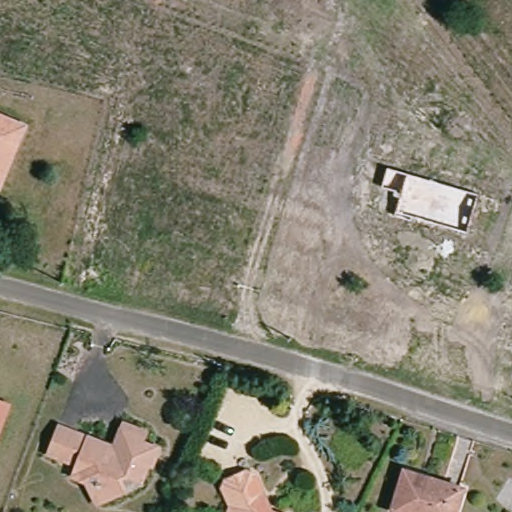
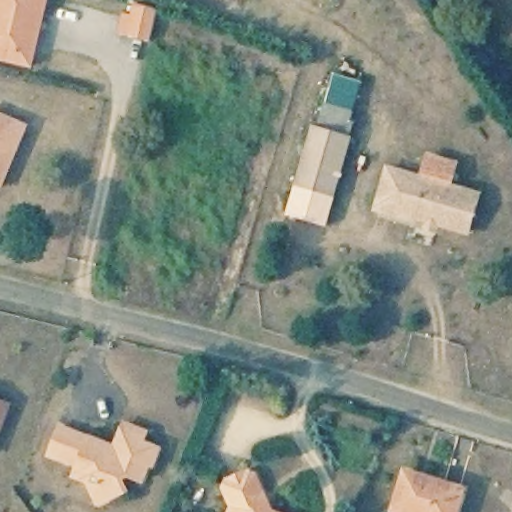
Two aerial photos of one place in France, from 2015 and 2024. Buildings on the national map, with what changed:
new [(48,0),(31,70),(0,64),(0,0),(48,0)]
unchanged [(24,124),(1,183),(0,183),(0,115),(24,124)]
new [(351,137),(335,199),(295,189),(311,126),(351,137)]
new [(480,192),(468,237),(436,229),(435,234),(371,216),(385,165),(480,192)]
unchanged [(7,405),(0,425),(0,402),(7,405)]
unchanged [(140,427),(136,437),(153,445),(146,460),(142,459),(135,475),(121,470),(114,474),(119,486),(91,498),(82,476),(69,470),(72,461),(45,450),(56,421),(86,433),(110,443),(120,419),(140,427)]
unchanged [(231,502),(223,483),(226,476),(246,467),(254,470),(260,485),(261,487),(268,504),(270,508),(279,512),(228,512),(231,502)]
unchanged [(455,512),(397,512),(392,510),(405,471),(461,489),(455,512)]

